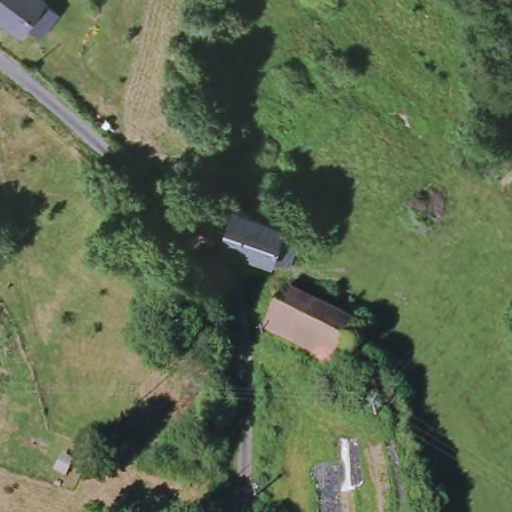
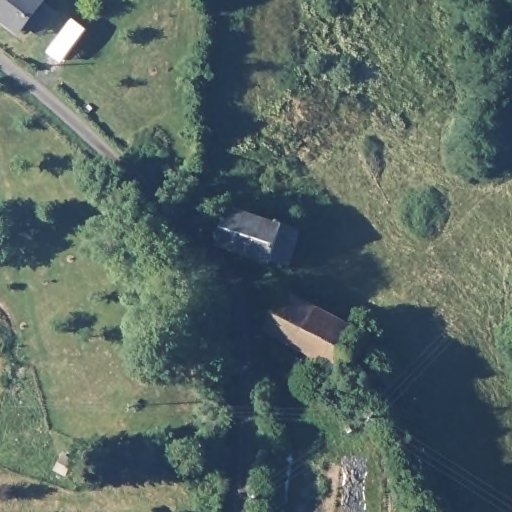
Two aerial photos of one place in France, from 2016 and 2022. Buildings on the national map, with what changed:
unchanged [(32,31),(25,40),(0,21),(0,0),(41,0),(50,7),(47,11),(62,23),(47,43),(32,31)]
unchanged [(225,208),(295,224),(285,264),(216,248),(225,208)]
unchanged [(283,292),(362,321),(347,362),(265,330),(283,292)]

